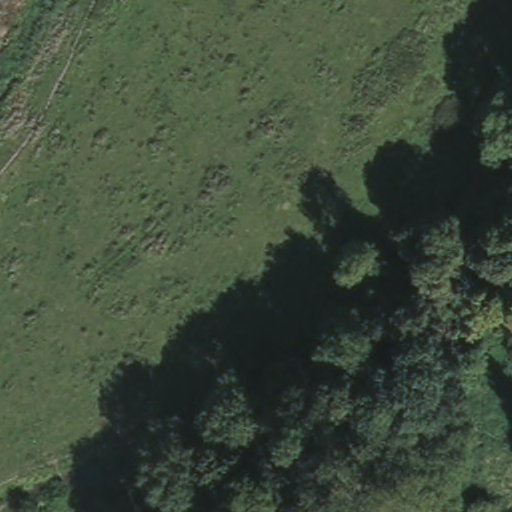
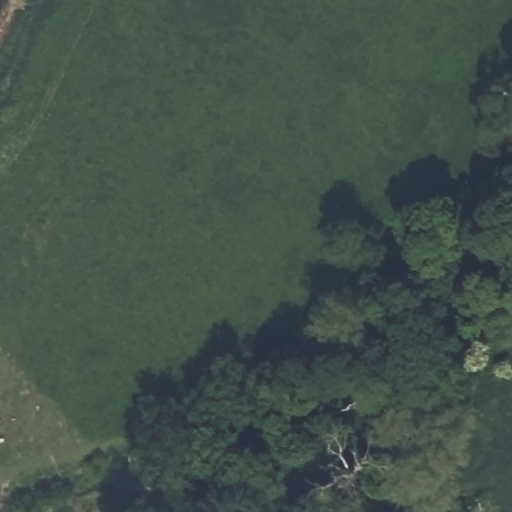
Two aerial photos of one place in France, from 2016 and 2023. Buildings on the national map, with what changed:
[]

